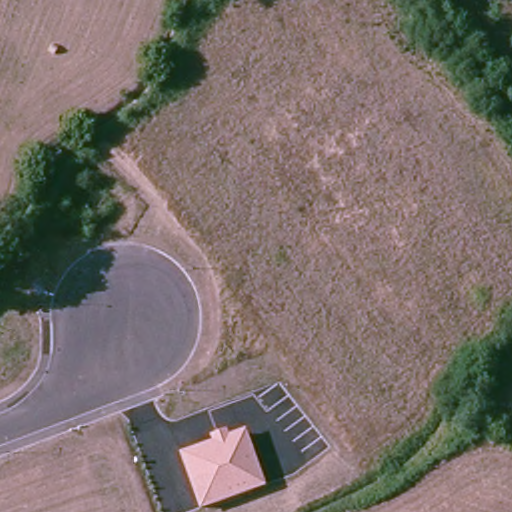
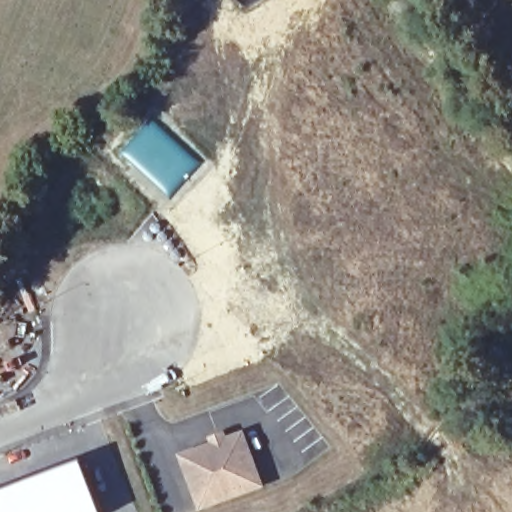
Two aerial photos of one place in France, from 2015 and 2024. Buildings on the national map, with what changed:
unchanged [(210,440),(207,435),(225,428),(227,434),(245,427),(266,485),(198,511),(178,452),(210,440)]
new [(103,512),(0,512),(0,490),(82,461),(103,512)]

